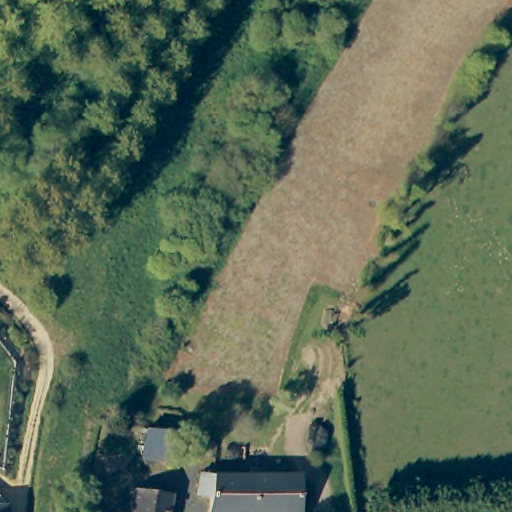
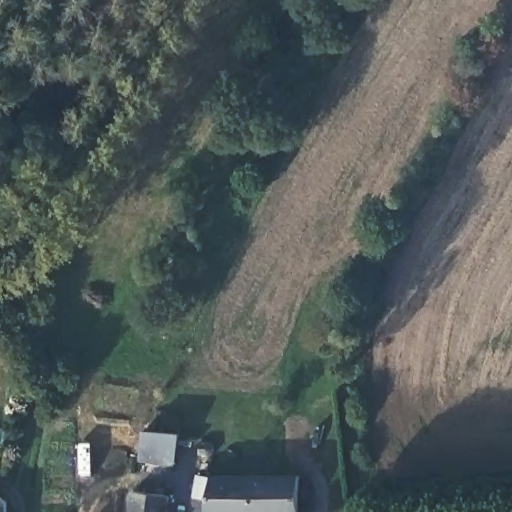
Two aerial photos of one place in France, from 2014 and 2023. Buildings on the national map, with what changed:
unchanged [(197,455),(197,446),(214,445),(215,454),(197,455)]
unchanged [(213,512),(215,497),(201,496),(203,475),(218,475),(305,476),(305,512),(213,512)]
unchanged [(170,497),(168,512),(132,512),(134,491),(170,497)]
unchanged [(7,512),(0,512),(0,505),(7,505),(7,512)]

